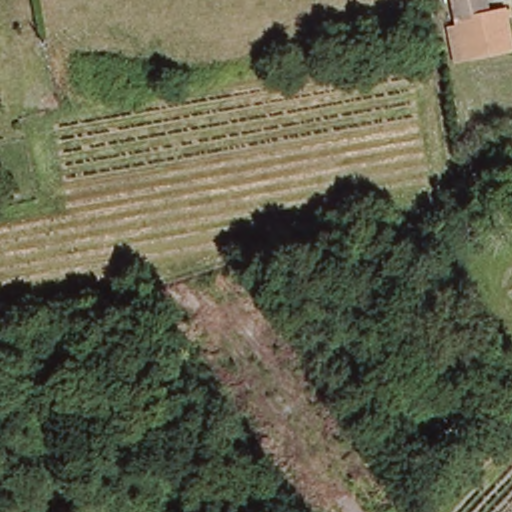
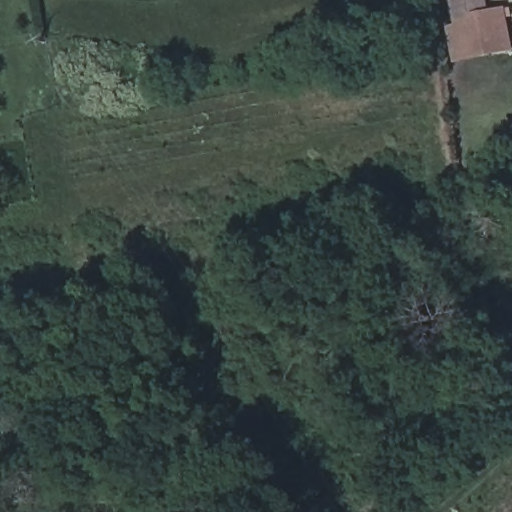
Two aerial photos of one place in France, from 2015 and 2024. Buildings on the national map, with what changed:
unchanged [(450,15),(448,0),(481,0),(483,9),(450,15)]
unchanged [(510,5),(512,13),(512,57),(460,66),(451,15),(483,9),(510,5)]

